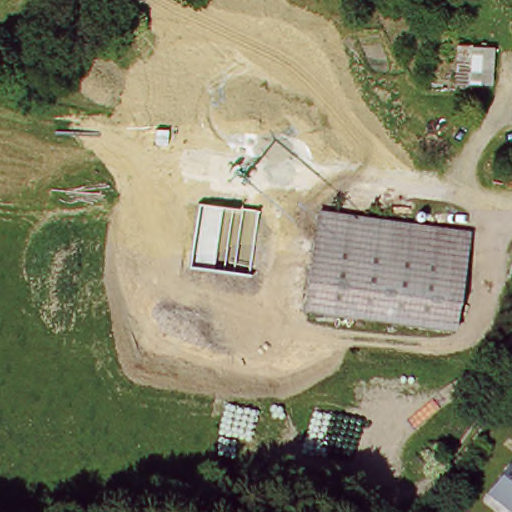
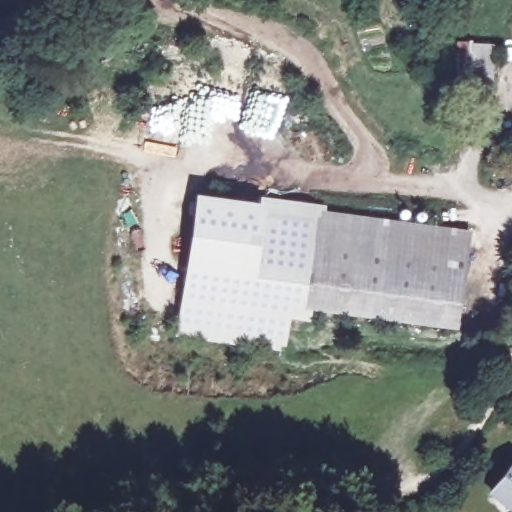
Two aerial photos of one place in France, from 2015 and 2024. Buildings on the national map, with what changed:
unchanged [(20,45),(30,50),(24,60),(15,55),(20,45)]
unchanged [(487,52),(480,88),(460,84),(467,48),(487,52)]
new [(308,314),(307,321),(288,319),(285,352),(175,337),(193,195),(260,204),(259,197),(323,206),(322,216),(308,314)]
unchanged [(472,235),(457,335),(308,314),(322,216),(472,235)]
unchanged [(512,464),(512,507),(491,491),(512,464)]

